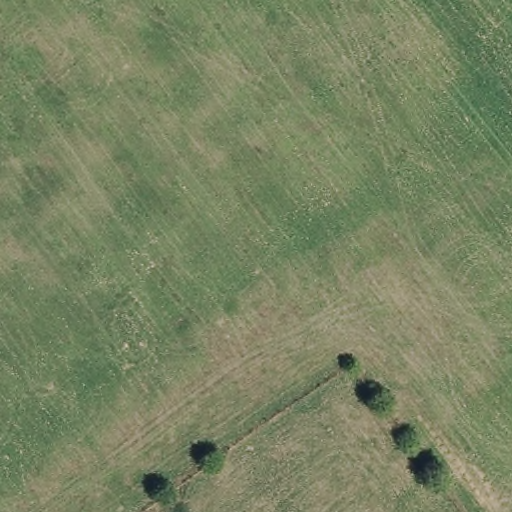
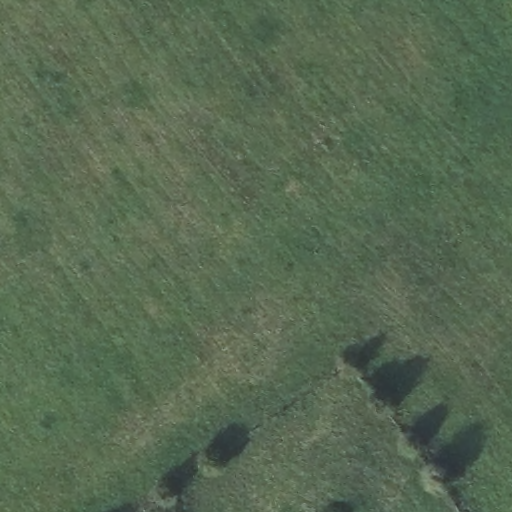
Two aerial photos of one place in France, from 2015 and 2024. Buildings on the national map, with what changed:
[]

